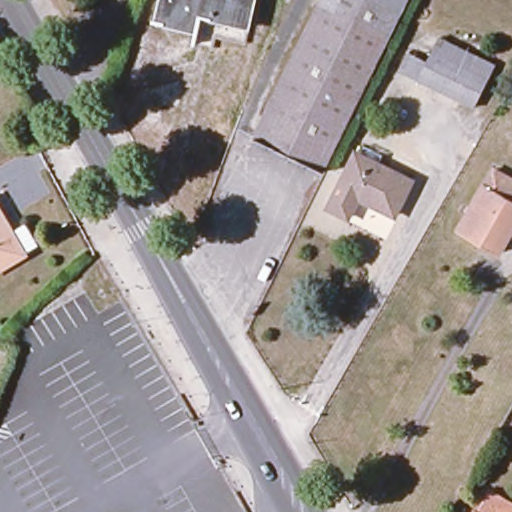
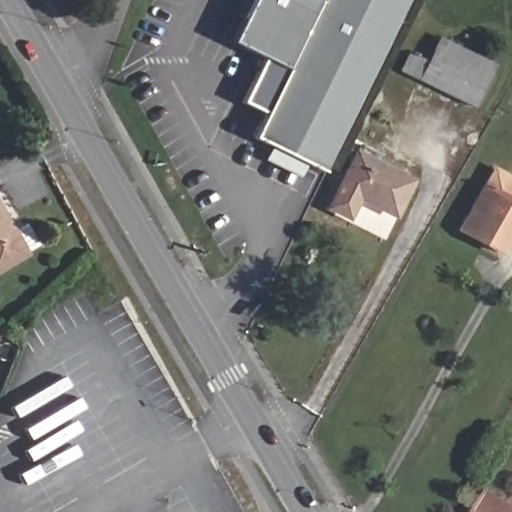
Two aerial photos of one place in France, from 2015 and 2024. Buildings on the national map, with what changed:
demolished [(246,30),(202,21),(197,39),(153,30),(161,0),(252,0),(246,30)]
new [(251,0),(316,0),(321,3),(287,71),(231,44),(251,0)]
unchanged [(287,71),(321,3),(322,0),(405,0),(318,177),(251,143),(287,71)]
new [(321,3),(316,0),(322,0),(321,3)]
unchanged [(491,72),(470,113),(397,74),(407,58),(425,67),(437,44),(491,72)]
new [(287,71),(265,115),(241,103),(263,60),(287,71)]
unchanged [(392,222),(356,204),(345,224),(323,213),(352,157),(410,185),(392,222)]
unchanged [(512,182),(512,233),(499,256),(458,233),(493,171),(512,182)]
unchanged [(36,251),(0,273),(0,221),(8,235),(21,227),(36,251)]
unchanged [(510,510),(512,510),(512,512),(476,512),(485,496),(510,510)]

